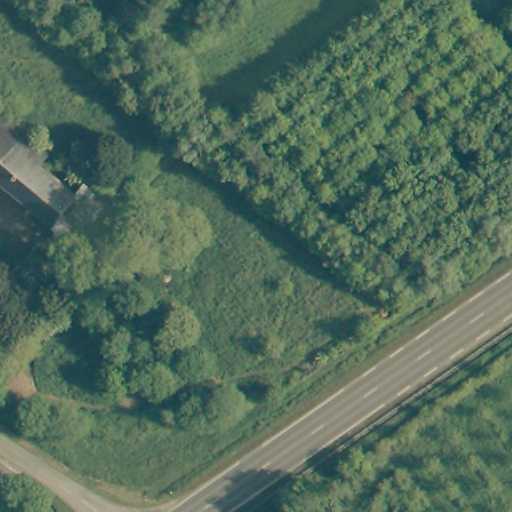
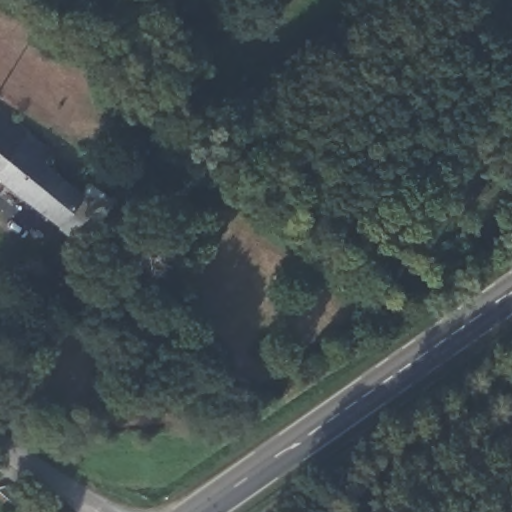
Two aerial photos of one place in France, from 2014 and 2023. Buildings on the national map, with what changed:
unchanged [(24,135),(50,155),(41,167),(79,195),(56,226),(0,181),(0,112),(26,132),(24,135)]
unchanged [(79,195),(87,183),(110,202),(79,244),(56,226),(79,195)]

